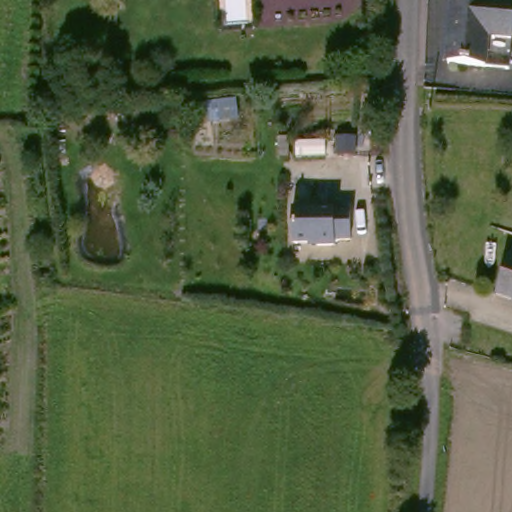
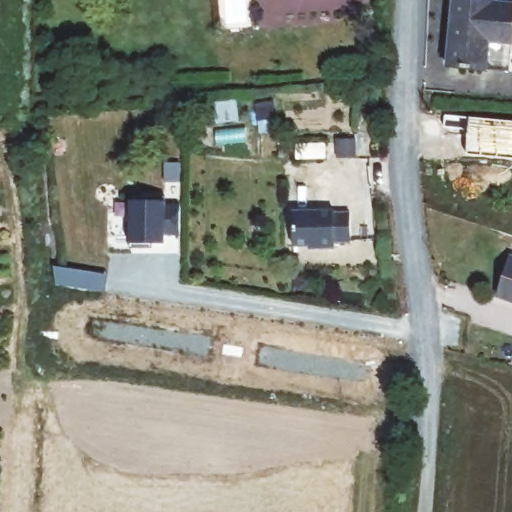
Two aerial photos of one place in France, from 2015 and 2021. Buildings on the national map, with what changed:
unchanged [(487,44),(482,73),(445,68),(453,0),(503,0),(512,1),(512,20),(510,44),(487,44)]
unchanged [(325,147),(324,161),(295,161),(295,146),(325,147)]
new [(165,201),(166,203),(181,204),(180,236),(165,235),(165,243),(152,243),(152,247),(131,247),(129,243),(130,201),(165,201)]
unchanged [(333,210),(333,213),(349,213),(349,243),(333,242),(333,247),(315,247),(315,245),(291,244),(292,209),(333,210)]
unchanged [(507,266),(512,268),(512,309),(498,305),(507,266)]

